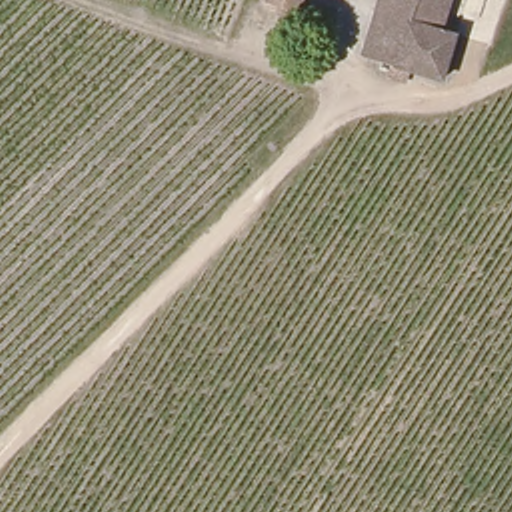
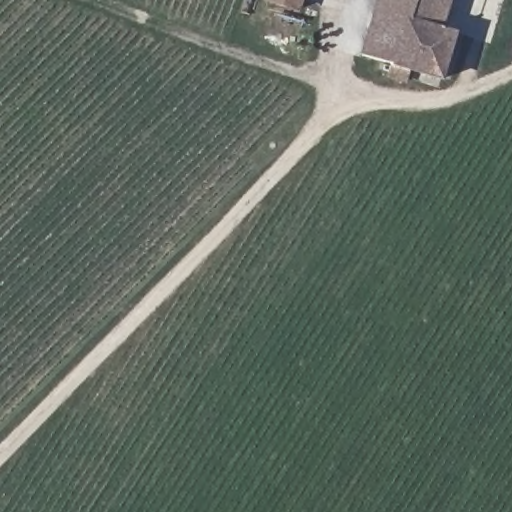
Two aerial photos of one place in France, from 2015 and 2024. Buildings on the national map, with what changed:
unchanged [(276,10),(278,2),(272,0),(300,0),(294,16),(276,10)]
unchanged [(451,0),(441,33),(453,36),(439,80),(413,71),(409,84),(376,74),(377,71),(369,68),(359,65),(362,54),(379,0),(451,0)]

